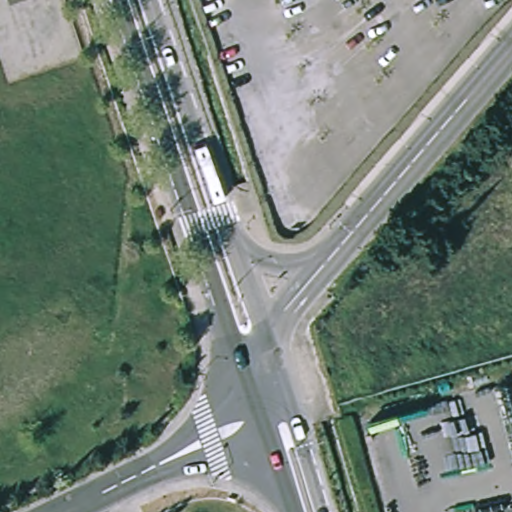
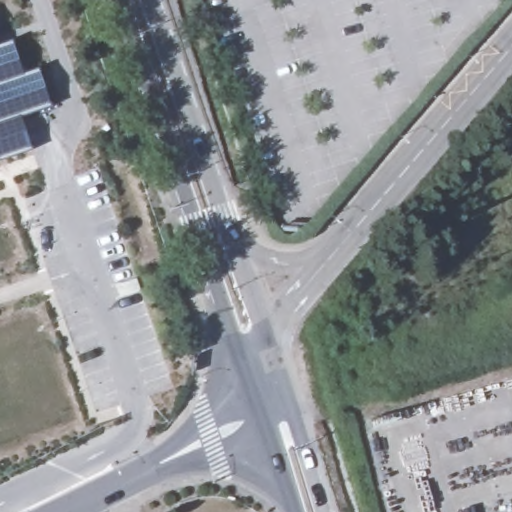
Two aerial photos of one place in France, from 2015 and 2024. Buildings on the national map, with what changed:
new [(12,42),(23,75),(38,70),(52,106),(21,117),(32,149),(0,161),(0,46),(12,42)]

